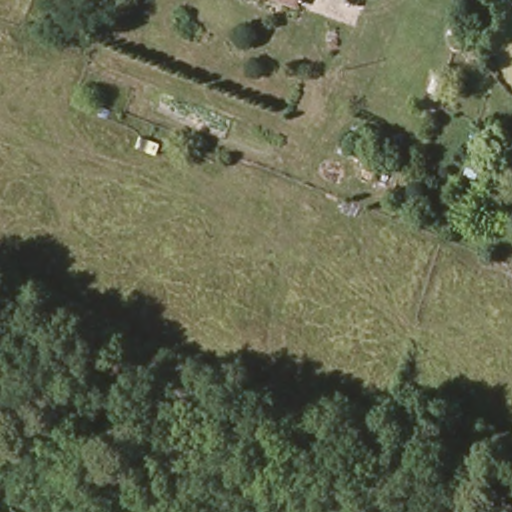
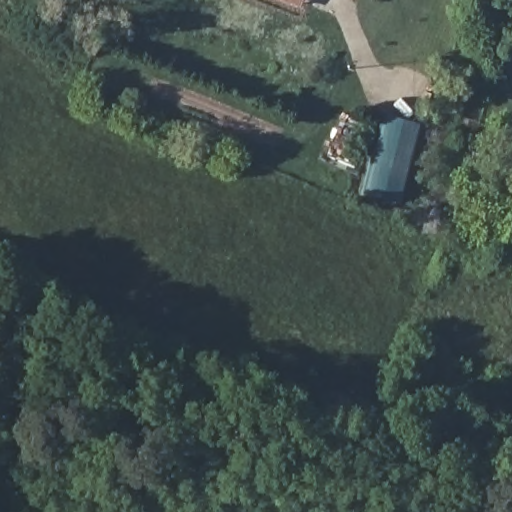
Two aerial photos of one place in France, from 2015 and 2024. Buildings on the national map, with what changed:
unchanged [(296,6),(277,0),(298,0),(296,6)]
new [(383,114),(417,123),(397,202),(363,194),(383,114)]

